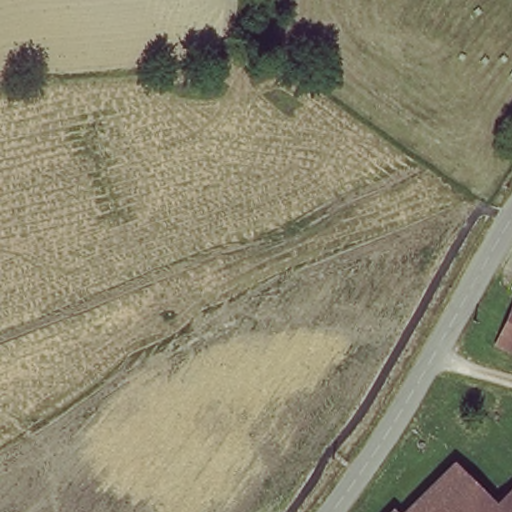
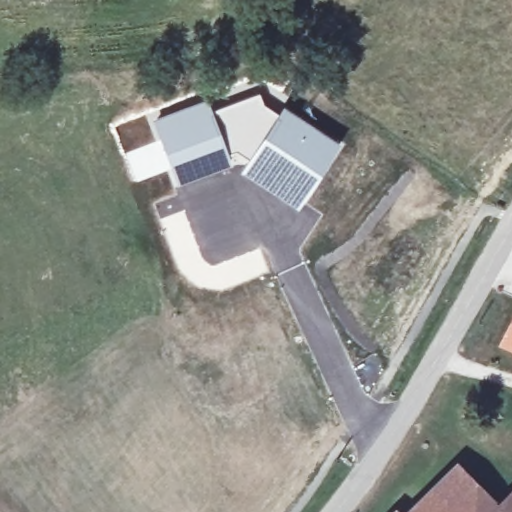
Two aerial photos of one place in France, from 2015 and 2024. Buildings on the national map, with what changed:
new [(154,119),(209,98),(213,110),(260,92),(265,106),(277,114),(284,106),(341,144),(320,176),(295,211),(238,174),(243,167),(235,165),(232,169),(176,189),(153,122),(154,119)]
unchanged [(495,343),(512,303),(512,350),(495,343)]
unchanged [(512,478),(512,512),(460,512),(437,492),(461,463),(497,496),(512,478)]
unchanged [(437,492),(460,512),(410,512),(432,486),(437,492)]
unchanged [(401,512),(395,512),(398,509),(401,512)]

